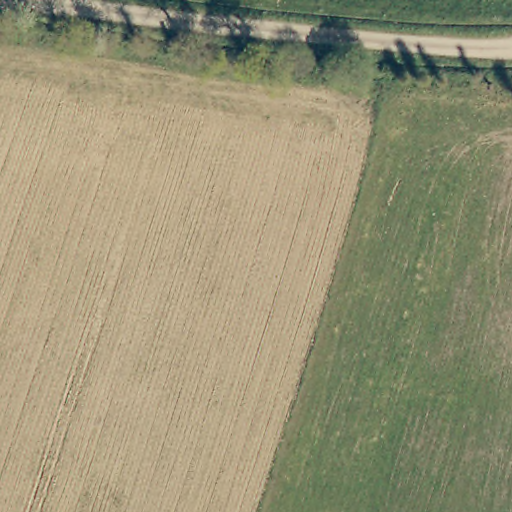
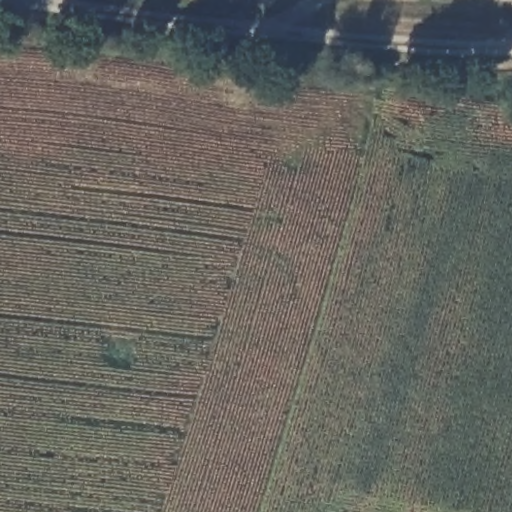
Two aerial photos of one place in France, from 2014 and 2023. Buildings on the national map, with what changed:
[]

